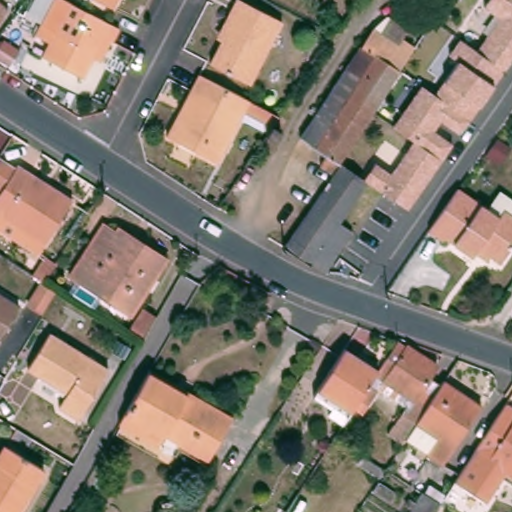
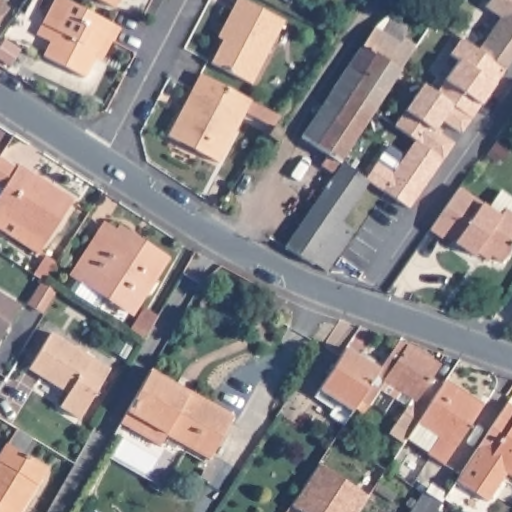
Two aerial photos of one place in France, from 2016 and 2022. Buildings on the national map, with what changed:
unchanged [(117,10),(99,0),(122,0),(117,10)]
unchanged [(286,25),(253,86),(214,65),(238,17),(232,15),(240,0),(286,25)]
unchanged [(395,172),(416,141),(396,130),(425,86),(438,94),(461,57),(450,51),(461,36),(481,47),(502,14),(490,5),(493,0),(512,0),(512,61),(464,129),(444,119),(435,132),(454,141),(408,207),(371,181),(373,178),(370,176),(378,161),(395,172)]
unchanged [(13,11),(0,29),(0,2),(13,11)]
unchanged [(116,26),(88,81),(46,58),(53,45),(41,39),(55,11),(67,17),(74,3),(116,26)]
unchanged [(343,158),(333,172),(320,164),(328,152),(304,137),(378,28),(385,32),(396,16),(413,27),(406,37),(418,45),(343,158)]
unchanged [(277,129),(250,114),(220,167),(170,139),(184,114),(189,116),(200,95),(195,92),(203,75),(285,117),(277,129)]
unchanged [(278,145),(270,139),(277,129),(286,134),(278,145)]
unchanged [(1,159),(16,168),(19,164),(31,172),(29,177),(49,190),(52,185),(74,200),(37,257),(0,232),(0,194),(2,191),(0,189),(0,161),(1,159)]
unchanged [(288,245),(347,161),(370,176),(373,178),(371,181),(345,219),(358,229),(330,270),(318,261),(316,263),(288,245)]
unchanged [(472,254),(447,236),(443,240),(431,230),(436,222),(461,188),(489,207),(501,191),(512,198),(512,249),(503,261),(493,254),(488,259),(475,250),(472,254)]
unchanged [(135,313),(107,297),(100,308),(75,293),(83,281),(78,277),(111,227),(124,236),(127,230),(170,258),(135,313)]
unchanged [(24,305),(0,342),(0,290),(24,305)]
unchanged [(150,339),(135,330),(150,308),(162,317),(150,339)]
unchanged [(110,372),(79,421),(60,409),(69,395),(31,372),(52,337),(110,372)]
unchanged [(401,341),(410,346),(411,342),(442,363),(418,398),(389,379),(373,403),(364,397),(382,370),(401,341)]
unchanged [(350,348),(382,370),(364,397),(355,412),(322,391),(350,348)]
unchanged [(174,428),(167,439),(127,417),(156,368),(191,390),(194,387),(215,401),(205,416),(190,438),(174,428)]
unchanged [(406,441),(393,432),(406,411),(420,420),(447,379),(485,404),(447,462),(429,451),(430,449),(410,436),(406,441)]
unchanged [(205,416),(215,401),(237,413),(215,452),(190,438),(205,416)]
unchanged [(512,478),(478,455),(510,406),(512,407),(512,478)]
unchanged [(0,512),(0,449),(5,442),(45,467),(38,477),(44,482),(24,512),(0,512)]
unchanged [(508,476),(487,507),(455,487),(478,455),(508,476)]
new [(366,494),(355,512),(302,512),(290,503),(317,462),(366,494)]
unchanged [(450,495),(439,512),(412,512),(431,482),(450,495)]

